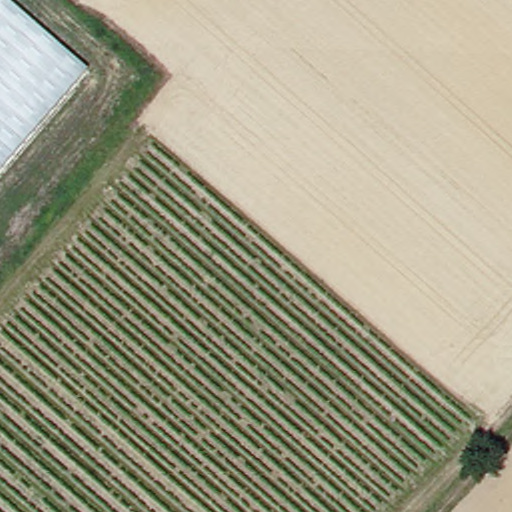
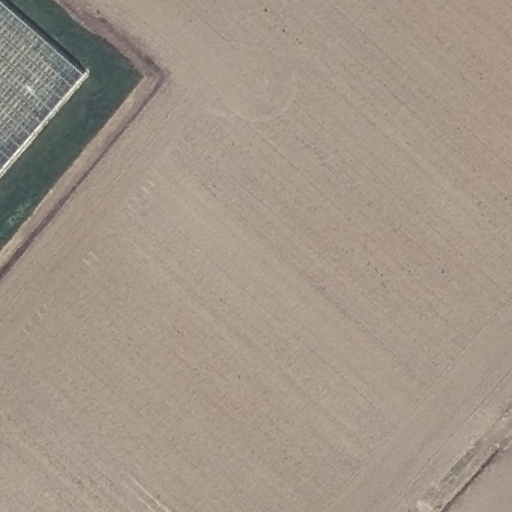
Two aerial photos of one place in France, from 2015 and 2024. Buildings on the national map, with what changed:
unchanged [(0,160),(0,2),(78,70),(0,160)]

